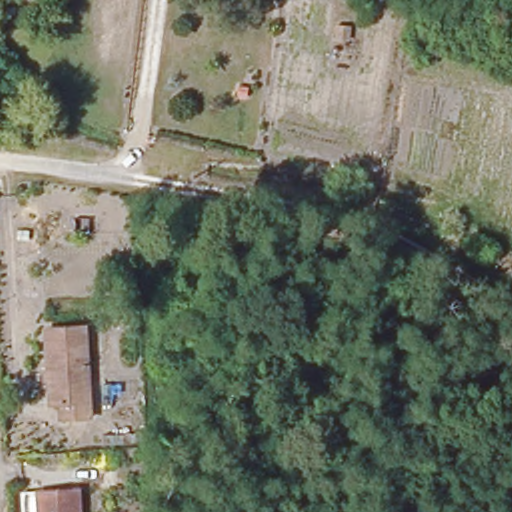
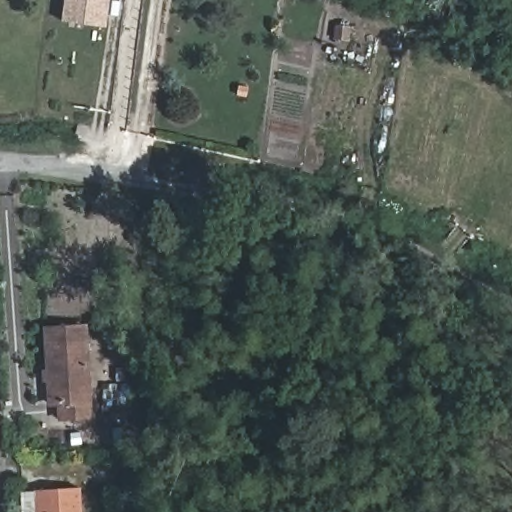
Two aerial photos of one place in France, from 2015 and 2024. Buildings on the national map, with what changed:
new [(65,21),(68,0),(109,0),(105,26),(65,21)]
unchanged [(90,332),(96,422),(69,423),(68,409),(58,410),(55,333),(90,332)]
unchanged [(76,492),(78,512),(23,512),(21,498),(35,497),(35,495),(76,492)]

